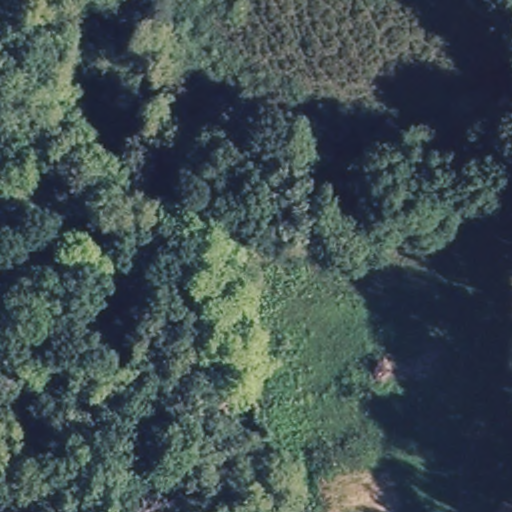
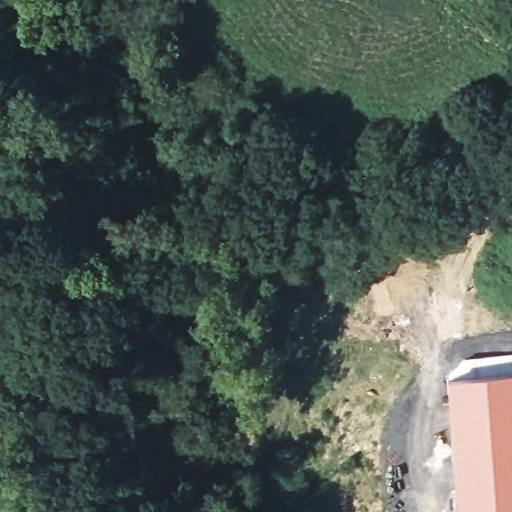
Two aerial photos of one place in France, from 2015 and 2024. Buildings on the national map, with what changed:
unchanged [(167,209),(173,204),(177,210),(171,215),(167,209)]
unchanged [(229,291),(225,287),(229,283),(233,287),(229,291)]
new [(512,356),(512,512),(454,512),(445,374),(457,369),(477,359),(512,356)]

